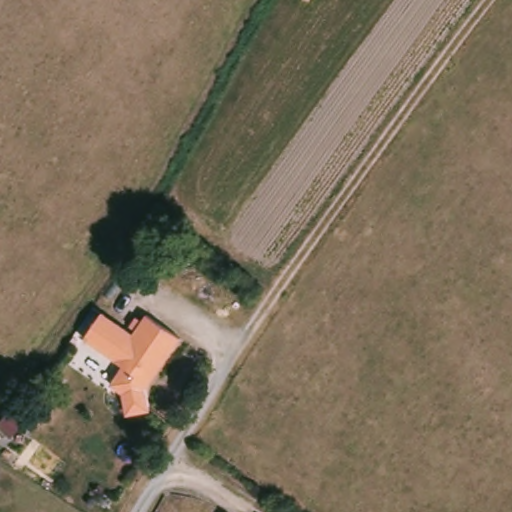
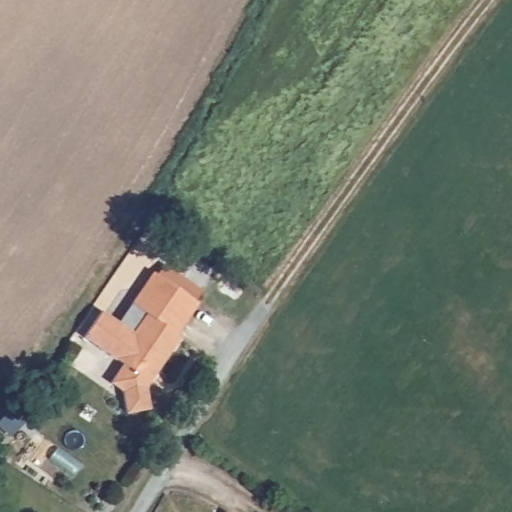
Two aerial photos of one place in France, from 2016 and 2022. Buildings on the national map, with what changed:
new [(141,321),(129,341),(112,331),(151,272),(157,276),(165,267),(202,292),(196,302),(198,303),(178,333),(181,336),(177,342),(141,321)]
unchanged [(149,416),(126,421),(121,400),(109,392),(121,372),(96,357),(80,347),(96,321),(112,331),(129,341),(141,321),(177,342),(153,381),(144,395),(149,416)]
unchanged [(224,512),(218,512),(220,510),(224,512)]

